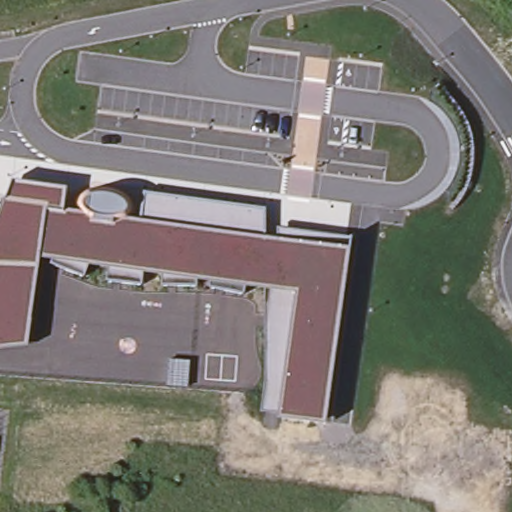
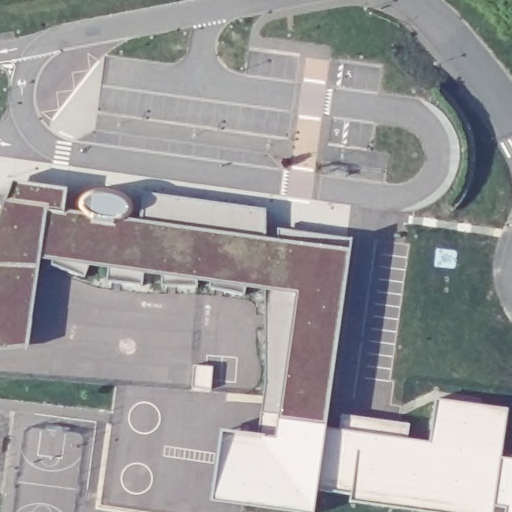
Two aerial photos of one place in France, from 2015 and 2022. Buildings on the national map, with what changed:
unchanged [(65,212),(80,212),(84,200),(92,195),(109,194),(122,198),(127,207),(127,218),(142,219),(144,195),(265,209),(267,239),(348,248),(339,320),(326,423),(278,417),(278,412),(262,410),(265,375),(266,321),(270,288),(48,259),(42,258),(35,306),(28,348),(0,350),(0,208),(11,180),(66,189),(65,212)]
new [(278,412),(278,417),(326,423),(340,427),(342,416),(410,425),(409,438),(426,441),(432,398),(509,409),(502,457),(512,459),(512,512),(417,512),(347,504),(348,496),(320,492),(318,512),(268,512),(206,503),(217,425),(260,430),(262,410),(278,412)]

